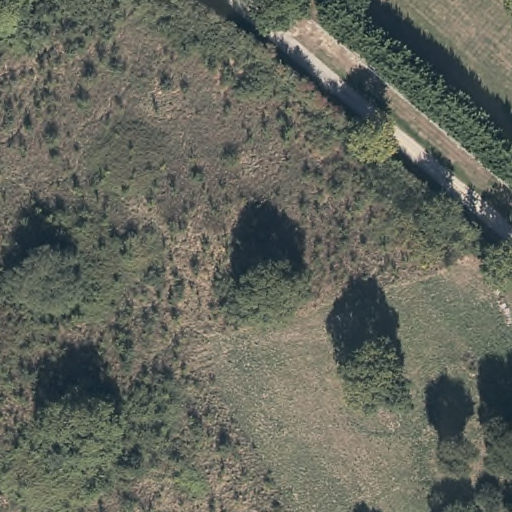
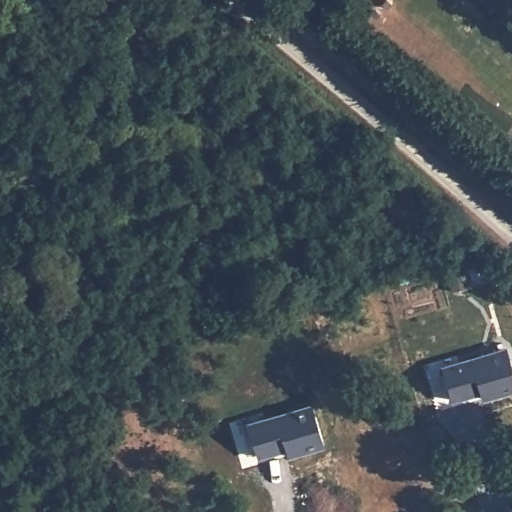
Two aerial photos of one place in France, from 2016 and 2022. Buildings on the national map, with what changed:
new [(512,363),(512,397),(484,405),(482,397),(454,406),(441,365),(507,345),(512,363)]
new [(324,449),(290,459),(287,450),(259,459),(248,421),(309,403),(324,449)]

